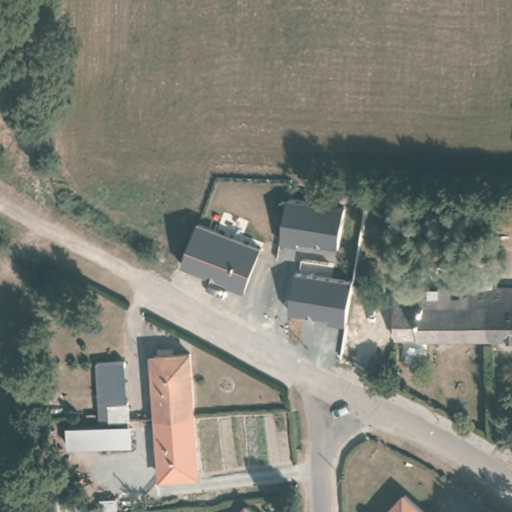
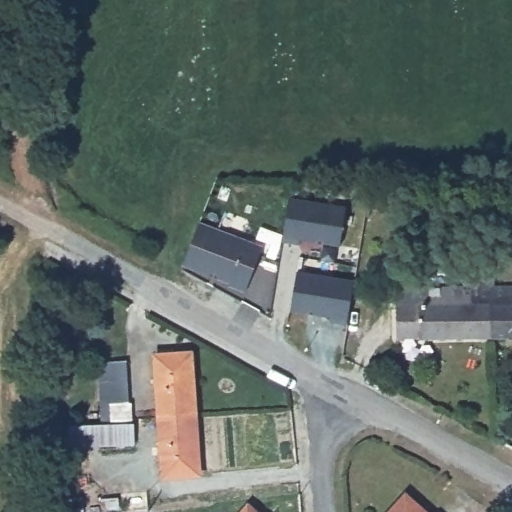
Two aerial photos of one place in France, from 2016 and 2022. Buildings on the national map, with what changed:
unchanged [(339,246),(299,238),(297,242),(285,240),(289,198),(342,204),(339,246)]
unchanged [(244,290),(182,264),(199,224),(261,246),(244,290)]
unchanged [(347,320),(292,310),(294,268),(351,277),(347,320)]
unchanged [(392,308),(419,308),(419,292),(465,293),(472,293),(472,310),(489,310),(487,342),(393,341),(392,308)]
unchanged [(512,294),(512,342),(487,342),(489,310),(472,310),(472,293),(494,294),(512,294)]
unchanged [(156,420),(153,360),(186,357),(190,418),(156,420)]
unchanged [(67,456),(63,433),(96,432),(94,367),(123,364),(133,451),(67,456)]
unchanged [(159,481),(156,420),(190,418),(194,479),(159,481)]
unchanged [(415,512),(391,512),(401,501),(415,512)]
unchanged [(245,512),(246,511),(247,512),(245,512)]

